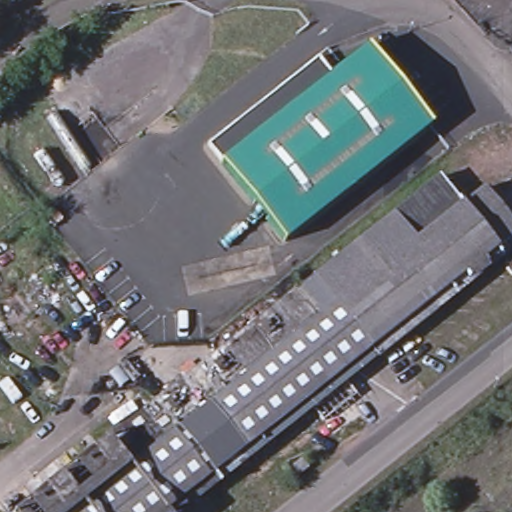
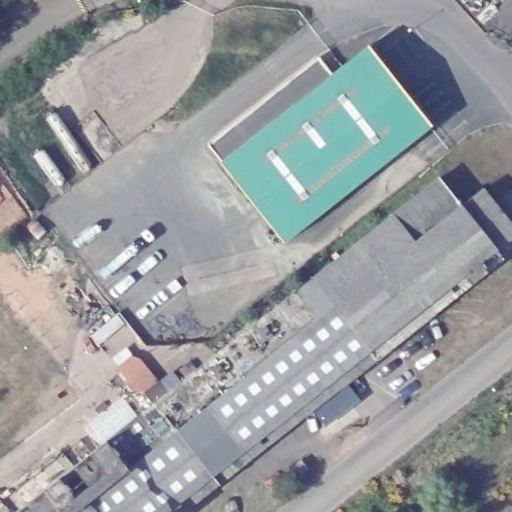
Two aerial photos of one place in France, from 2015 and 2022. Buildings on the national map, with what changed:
unchanged [(213,139),(317,59),(329,74),(366,45),(429,125),(283,242),(282,242),(204,146),(213,139)]
unchanged [(314,272),(316,271),(443,174),(464,198),(485,182),(512,217),(512,232),(511,232),(512,234),(512,245),(375,350),(374,351),(314,272)]
unchanged [(214,475),(168,512),(14,512),(10,508),(25,496),(67,464),(153,397),(314,272),(374,351),(214,475)]
unchanged [(290,472),(302,463),(306,468),(296,476),(294,478),(290,472)]

